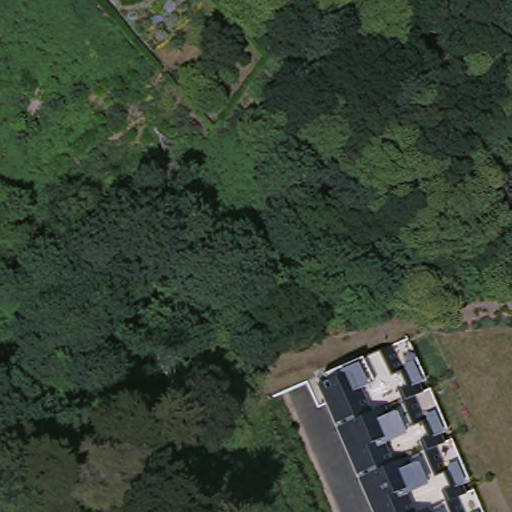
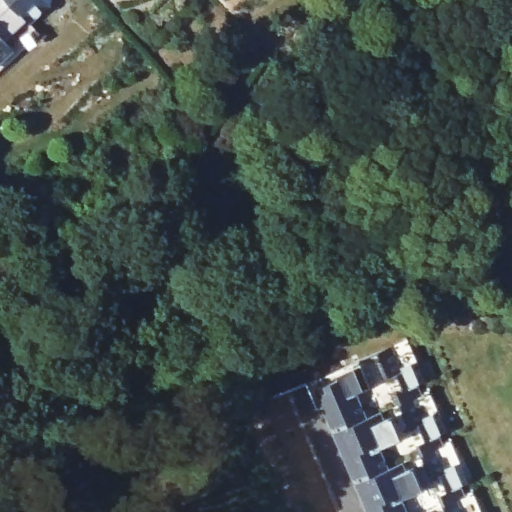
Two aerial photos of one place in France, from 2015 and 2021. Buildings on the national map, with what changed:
new [(29,26),(27,24),(6,42),(14,51),(0,65),(0,0),(44,0),(51,7),(29,26)]
new [(6,42),(27,24),(29,26),(39,37),(0,73),(0,65),(14,51),(6,42)]
unchanged [(408,345),(473,512),(365,512),(305,380),(408,345)]

